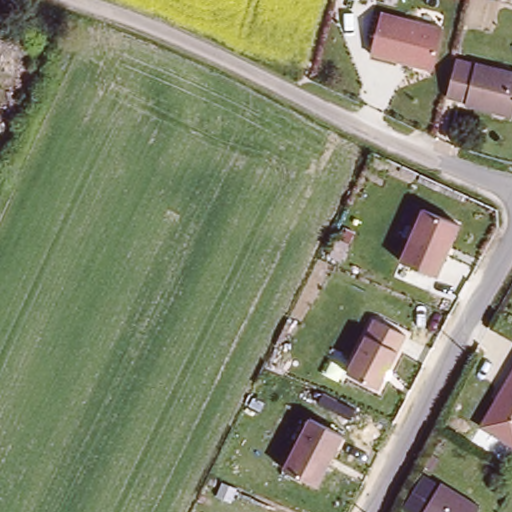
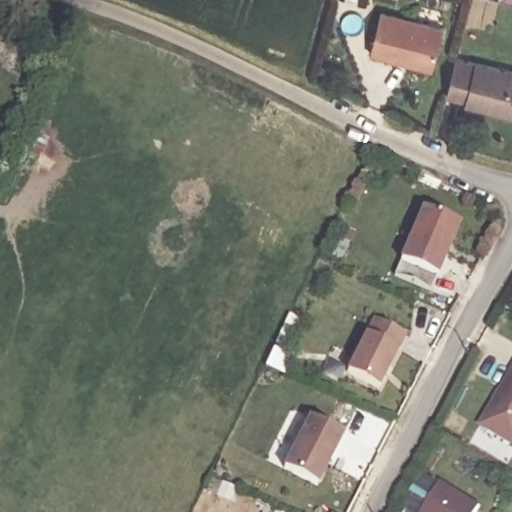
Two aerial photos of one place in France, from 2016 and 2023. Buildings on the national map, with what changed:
unchanged [(444,24),(436,72),(372,58),(382,13),(444,24)]
unchanged [(512,72),(512,98),(508,113),(445,95),(456,55),(512,72)]
unchanged [(463,226),(442,281),(404,268),(425,213),(463,226)]
unchanged [(409,335),(385,394),(348,379),(374,321),(409,335)]
unchanged [(512,381),(512,448),(483,432),(512,381)]
unchanged [(347,437),(321,494),(286,479),(310,422),(347,437)]
unchanged [(422,478),(440,488),(441,486),(478,506),(475,512),(406,512),(405,511),(422,478)]

